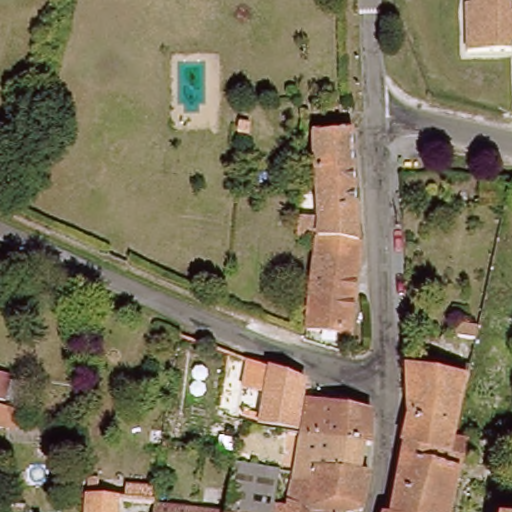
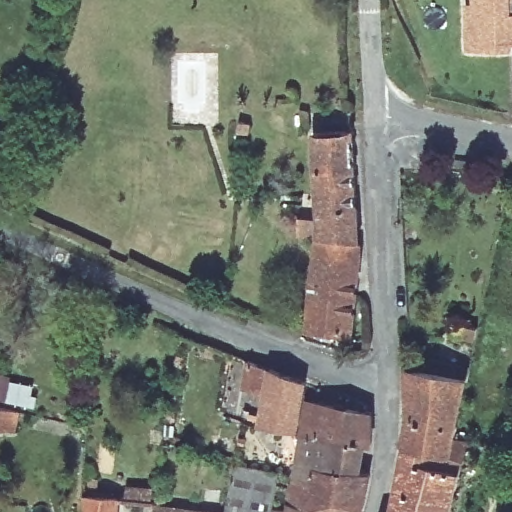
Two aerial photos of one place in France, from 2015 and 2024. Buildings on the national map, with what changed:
unchanged [(470,49),(468,12),(468,2),(475,2),(475,0),(512,0),(512,49),(470,49)]
unchanged [(240,121),(250,121),(249,132),(239,131),(240,121)]
unchanged [(315,235),(297,234),(300,217),(314,220),(313,131),(352,130),(360,241),(315,235)]
unchanged [(410,148),(418,148),(418,166),(408,166),(410,148)]
unchanged [(352,333),(307,330),(315,235),(360,241),(360,253),(352,333)]
unchanged [(477,339),(457,336),(460,323),(480,327),(477,339)]
unchanged [(301,382),(296,430),(252,423),(254,409),(237,405),(244,360),(301,382)]
unchanged [(402,443),(408,414),(411,416),(408,366),(418,367),(418,360),(472,364),(467,383),(451,437),(447,453),(406,444),(402,443)]
unchanged [(305,384),(316,389),(315,404),(367,412),(367,442),(357,442),(299,436),(302,403),(305,384)]
unchanged [(0,428),(0,407),(15,410),(11,427),(0,428)]
unchanged [(357,442),(354,470),(315,465),(311,485),(292,482),(299,436),(357,442)]
unchanged [(447,453),(451,437),(468,441),(452,512),(393,512),(406,444),(447,453)]
unchanged [(277,470),(272,508),(288,510),(292,482),(311,485),(305,512),(224,512),(233,464),(277,470)]
unchanged [(315,465),(354,470),(365,471),(362,489),(357,510),(348,512),(342,512),(337,511),(336,512),(305,512),(311,485),(315,465)]
unchanged [(123,485),(148,487),(147,500),(122,498),(123,485)]
unchanged [(113,512),(82,512),(83,495),(115,497),(113,512)]
unchanged [(149,512),(150,505),(210,512),(149,512)]

